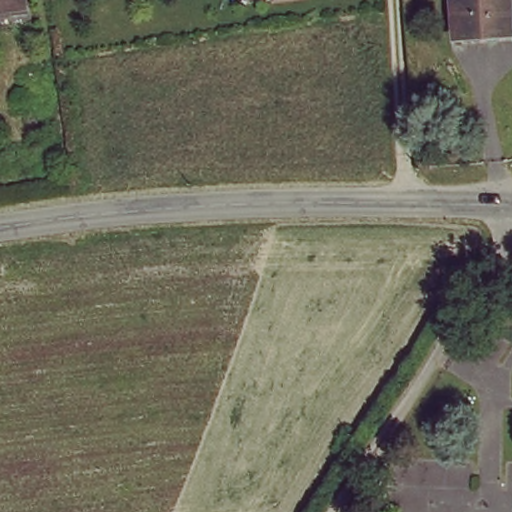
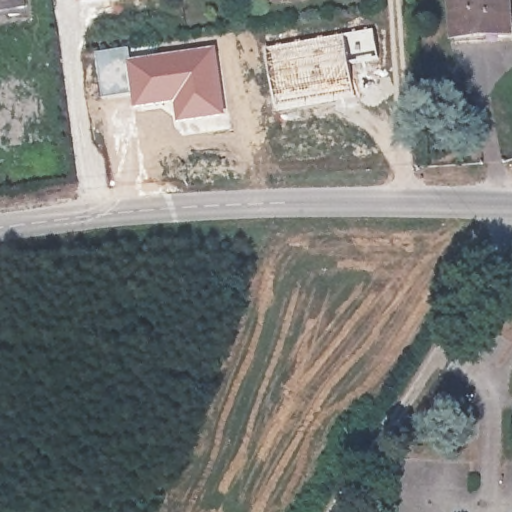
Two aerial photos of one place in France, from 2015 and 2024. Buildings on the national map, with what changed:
unchanged [(0,19),(0,0),(20,0),(23,16),(0,19)]
new [(76,0),(115,0),(77,4),(76,0)]
unchanged [(277,0),(306,0),(278,3),(277,0)]
unchanged [(487,34),(488,40),(460,43),(454,0),(512,0),(512,4),(512,30),(487,34)]
new [(346,34),(356,99),(275,110),(265,46),(346,34)]
new [(131,58),(191,48),(216,40),(228,118),(175,125),(171,105),(132,109),(130,98),(128,59),(131,58)]
new [(129,47),(131,58),(128,59),(130,98),(100,100),(93,52),(129,47)]

